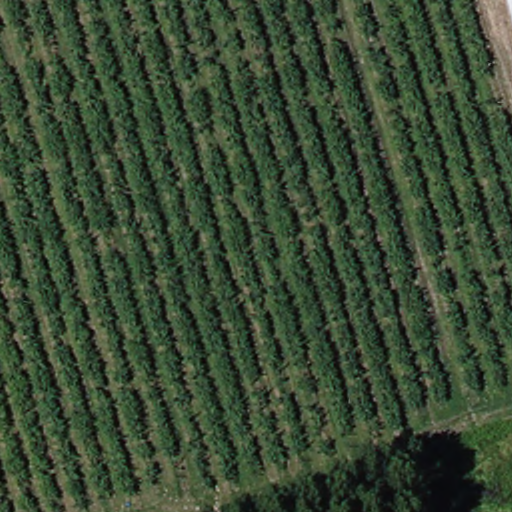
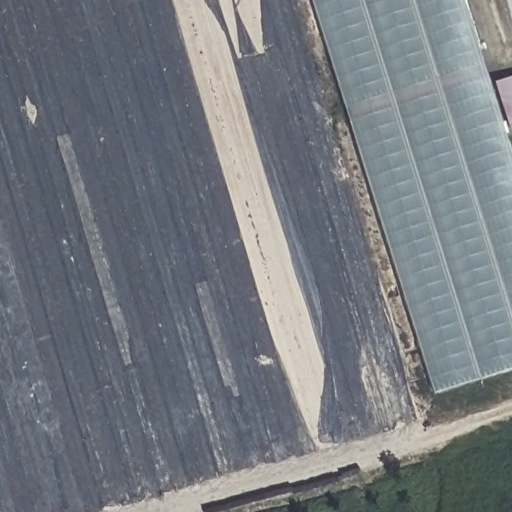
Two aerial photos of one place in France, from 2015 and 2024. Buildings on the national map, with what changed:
new [(512,371),(433,395),(311,0),(462,0),(512,161),(512,371)]
new [(512,20),(506,0),(512,0),(512,20)]
new [(494,82),(512,77),(512,131),(509,131),(494,82)]
new [(60,512),(0,512),(0,318),(60,512)]

